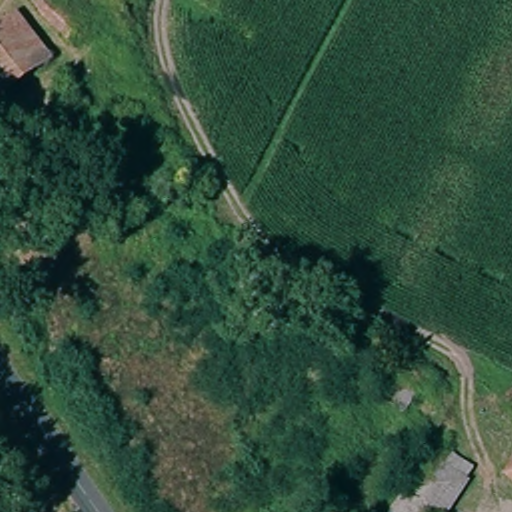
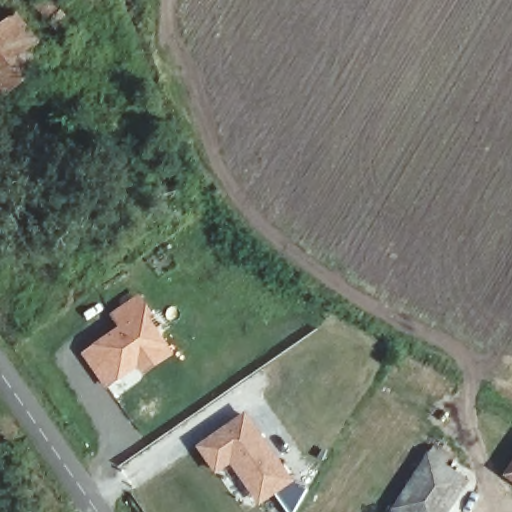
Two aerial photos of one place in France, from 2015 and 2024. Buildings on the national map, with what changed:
unchanged [(76,27),(66,37),(31,0),(50,0),(76,27)]
unchanged [(0,95),(0,19),(13,8),(50,56),(0,95)]
new [(116,325),(107,314),(138,293),(174,354),(139,380),(135,374),(108,391),(79,353),(116,325)]
demolished [(395,412),(383,404),(400,377),(412,385),(395,412)]
new [(294,480),(258,506),(230,464),(215,474),(196,446),(245,410),(294,480)]
unchanged [(425,454),(432,443),(443,450),(437,461),(463,478),(442,512),(388,512),(392,505),(425,454)]
unchanged [(512,470),(512,475),(509,473),(512,470)]

